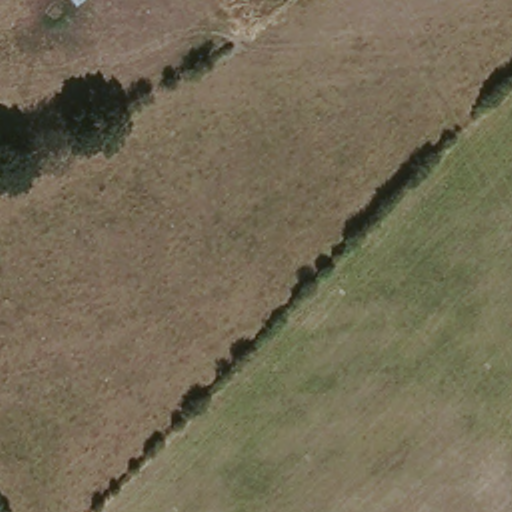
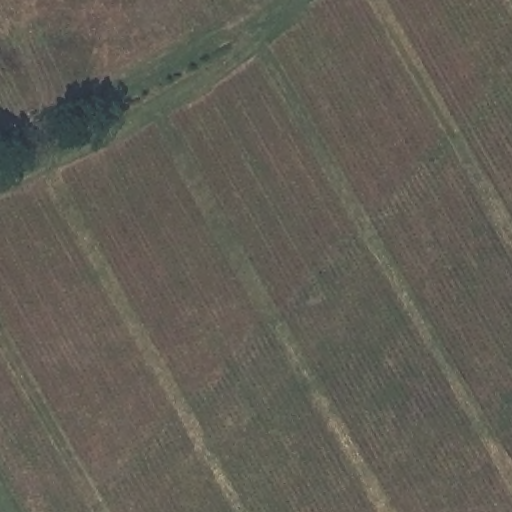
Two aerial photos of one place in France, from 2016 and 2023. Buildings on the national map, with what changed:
[]

